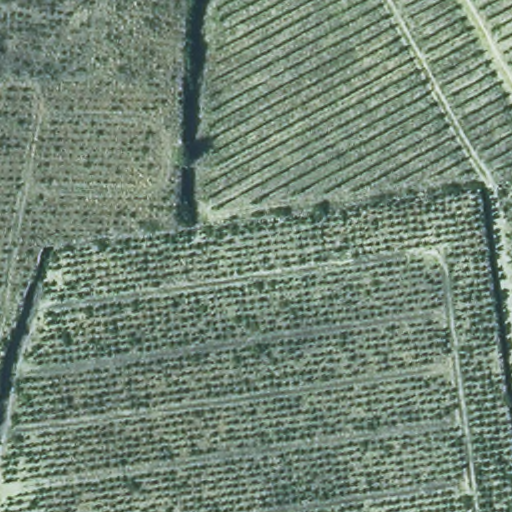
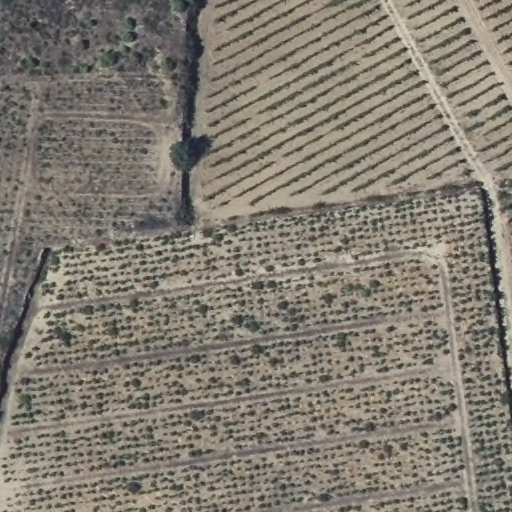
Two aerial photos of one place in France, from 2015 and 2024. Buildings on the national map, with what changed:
[]

